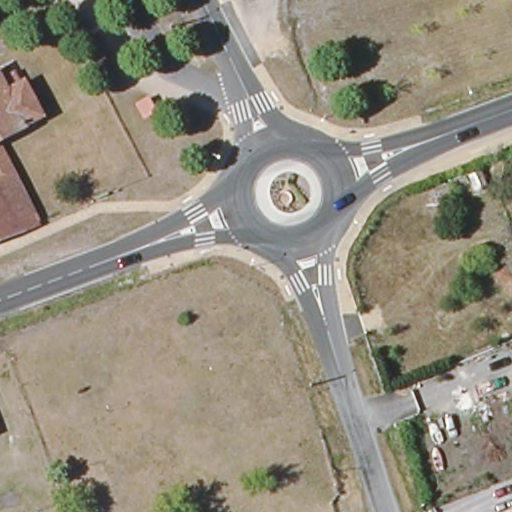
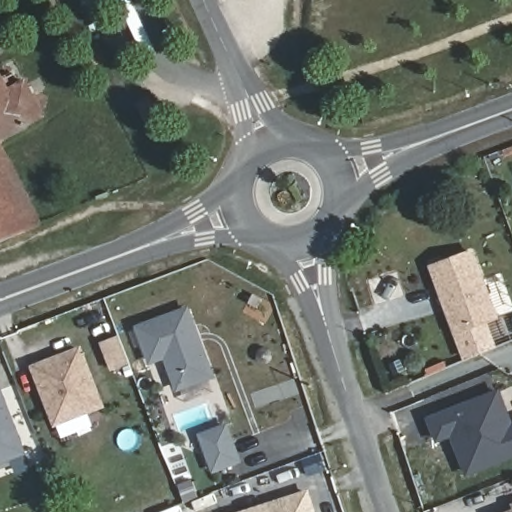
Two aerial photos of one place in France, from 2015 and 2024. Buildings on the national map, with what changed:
unchanged [(46,120),(0,145),(0,67),(12,61),(46,120)]
unchanged [(25,235),(0,183),(0,153),(36,226),(25,235)]
unchanged [(0,244),(0,183),(25,235),(0,244)]
new [(453,335),(427,265),(473,247),(500,318),(453,335)]
new [(149,365),(134,325),(189,305),(214,377),(176,391),(162,360),(149,365)]
new [(54,426),(30,365),(81,345),(104,407),(54,426)]
new [(469,472),(459,445),(464,444),(458,430),(439,438),(431,417),(500,390),(512,422),(512,455),(469,472)]
new [(0,461),(0,391),(24,452),(0,461)]
new [(242,462),(212,473),(197,434),(227,423),(242,462)]
new [(464,443),(459,445),(454,432),(458,430),(464,443)]
new [(236,512),(308,488),(316,512),(236,512)]
unchanged [(502,512),(512,508),(512,512),(502,512)]

